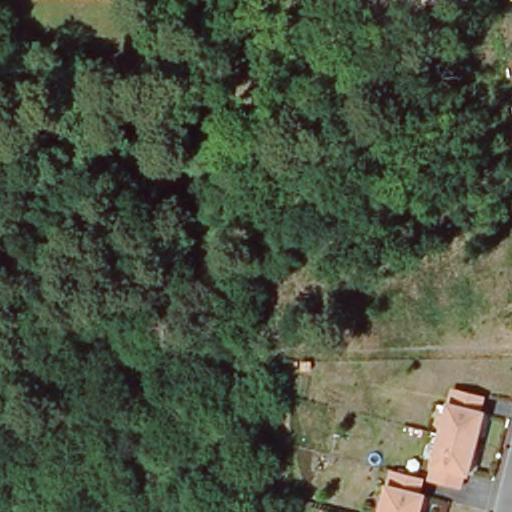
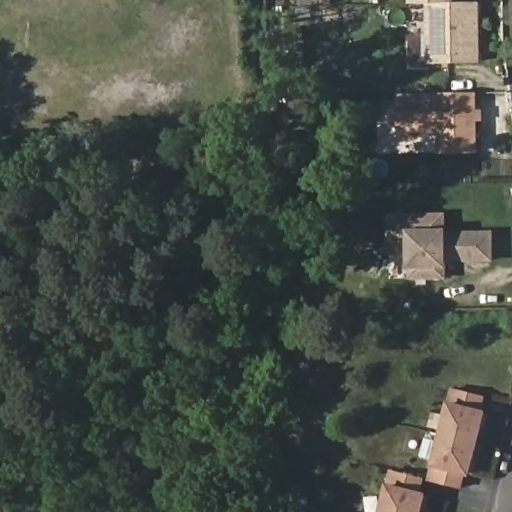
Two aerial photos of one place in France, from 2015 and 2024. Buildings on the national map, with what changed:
unchanged [(408,0),(455,0),(455,5),(427,6),(408,6),(408,0)]
new [(455,5),(481,2),(482,62),(428,64),(427,6),(455,5)]
new [(397,134),(397,93),(478,92),(479,110),(483,109),(483,122),(479,122),(479,153),(438,154),(437,133),(397,134)]
new [(447,264),(447,268),(447,279),(410,280),(408,270),(408,256),(389,256),(388,214),(448,212),(449,229),(449,232),(495,231),(495,261),(447,264)]
unchanged [(470,474),(430,464),(446,400),(487,410),(470,474)]
unchanged [(378,512),(385,483),(425,492),(421,512),(378,512)]

